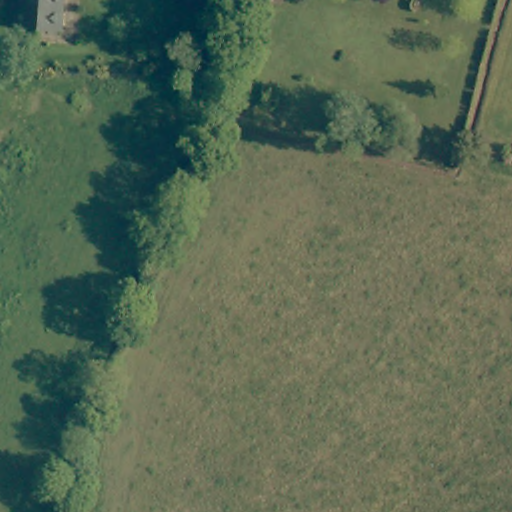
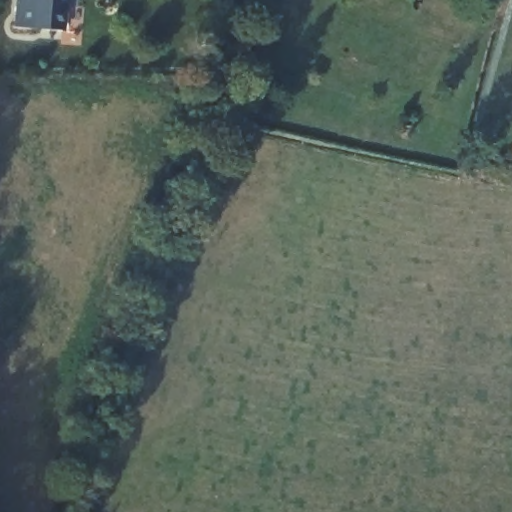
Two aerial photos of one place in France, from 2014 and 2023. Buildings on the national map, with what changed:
unchanged [(12,29),(15,0),(64,0),(62,32),(12,29)]

